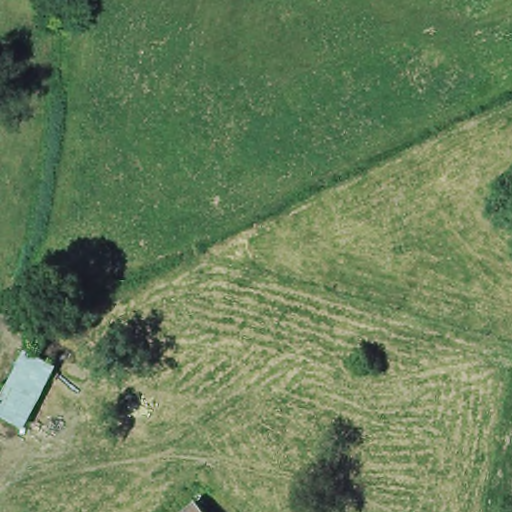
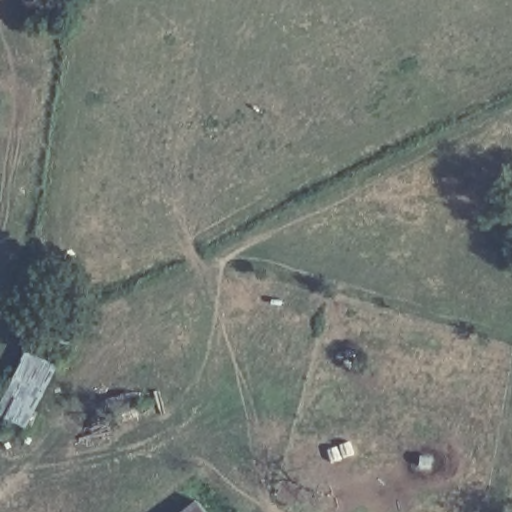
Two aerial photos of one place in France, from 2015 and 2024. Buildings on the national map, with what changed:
unchanged [(35,430),(0,415),(0,402),(25,348),(64,364),(35,430)]
unchanged [(197,512),(186,512),(192,507),(197,512)]

